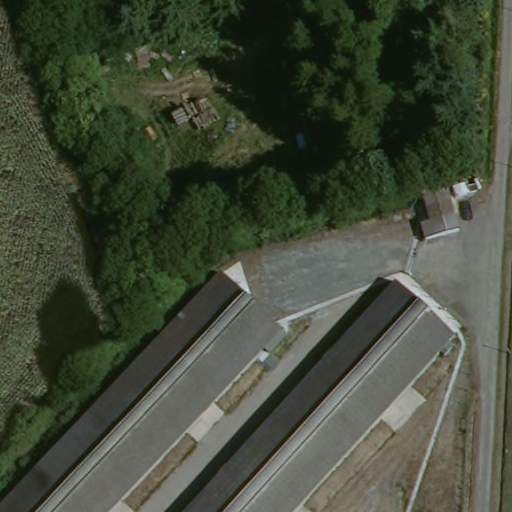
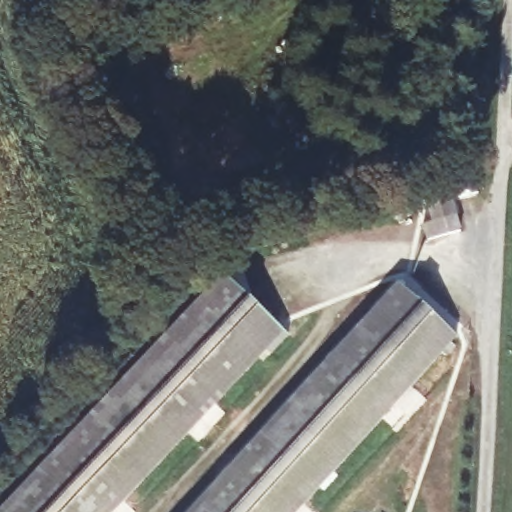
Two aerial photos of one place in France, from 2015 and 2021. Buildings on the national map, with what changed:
unchanged [(450,192),(455,207),(429,214),(426,199),(450,192)]
unchanged [(33,480),(228,277),(286,333),(115,512),(2,512),(33,480)]
unchanged [(194,506),(401,280),(459,335),(297,512),(189,512),(194,506)]

